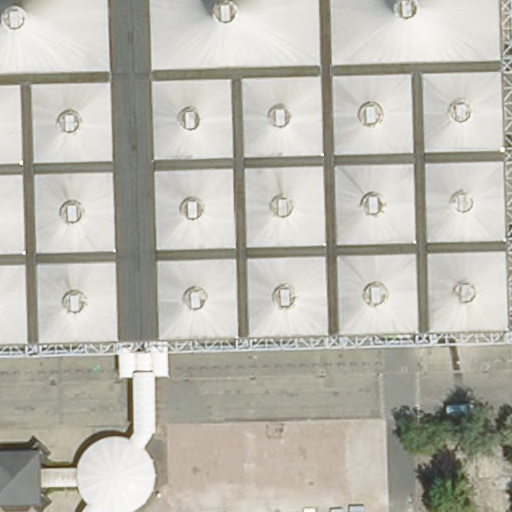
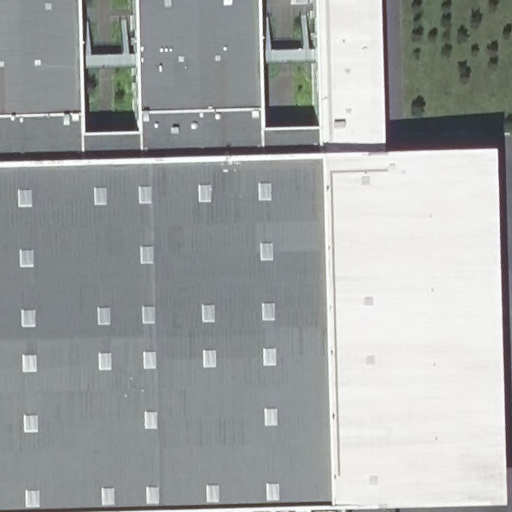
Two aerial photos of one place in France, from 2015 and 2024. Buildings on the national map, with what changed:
demolished [(512,288),(512,328),(0,341),(0,0),(505,0),(512,288)]
new [(401,293),(404,383),(386,383),(389,505),(343,506),(343,512),(0,512),(0,0),(75,0),(80,164),(135,162),(130,0),(253,0),(258,158),(314,157),(310,0),(375,0),(380,155),(383,295),(401,293)]
new [(311,62),(256,65),(255,52),(311,50),(311,62)]
new [(133,67),(77,70),(77,56),(132,55),(133,67)]
new [(134,134),(135,162),(80,164),(79,134),(134,134)]
new [(488,152),(498,505),(390,508),(386,383),(404,383),(401,293),(383,295),(380,155),(488,152)]
demolished [(80,497),(77,487),(45,487),(45,502),(0,500),(0,445),(44,446),(44,466),(77,463),(85,442),(94,434),(106,431),(132,436),(137,421),(136,373),(121,372),(119,339),(169,337),(171,374),(155,372),(156,411),(145,440),(154,455),(212,452),(212,472),(155,474),(154,488),(138,508),(127,512),(88,512),(90,507),(80,497)]
demolished [(212,437),(285,436),(285,427),(389,424),(390,477),(318,478),(319,502),(255,504),(254,482),(232,483),(232,511),(214,511),(212,472),(212,452),(212,437)]

